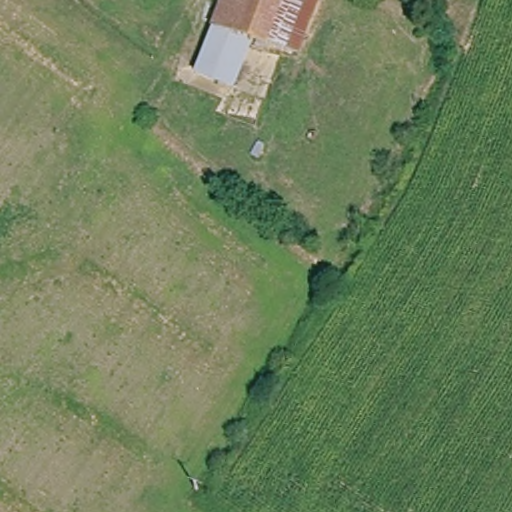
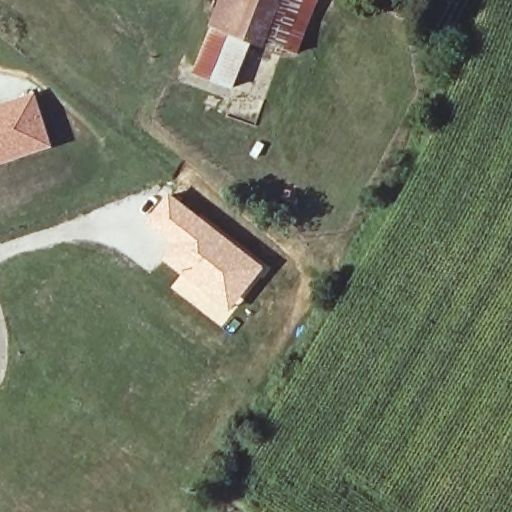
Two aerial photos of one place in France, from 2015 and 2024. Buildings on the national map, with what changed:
unchanged [(265,39),(241,30),(213,20),(220,0),(279,0),(265,39)]
unchanged [(295,49),(282,45),(265,39),(279,0),(313,0),(295,49)]
unchanged [(265,39),(243,98),(191,80),(213,20),(241,30),(265,39)]
new [(55,146),(0,165),(0,104),(35,92),(55,146)]
new [(170,191),(265,265),(221,326),(171,286),(180,274),(160,257),(170,242),(146,221),(170,191)]

